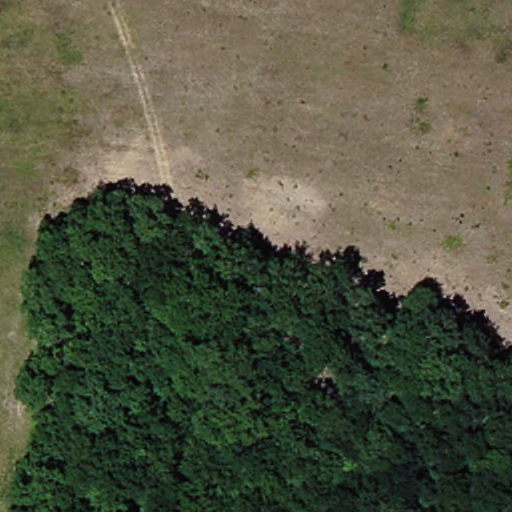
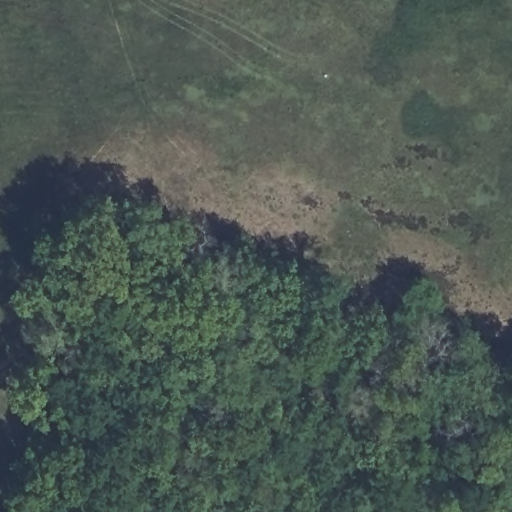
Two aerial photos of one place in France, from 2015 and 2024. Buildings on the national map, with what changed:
[]

